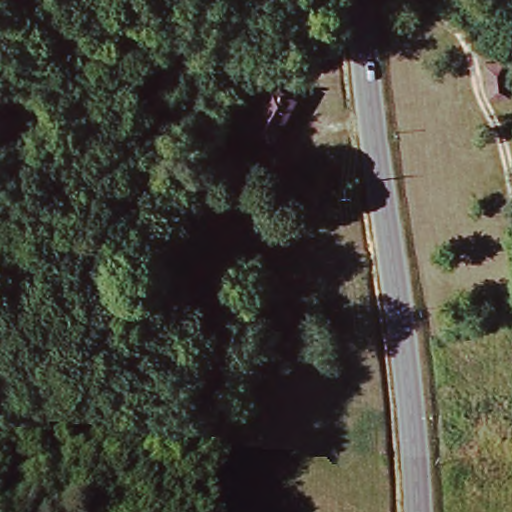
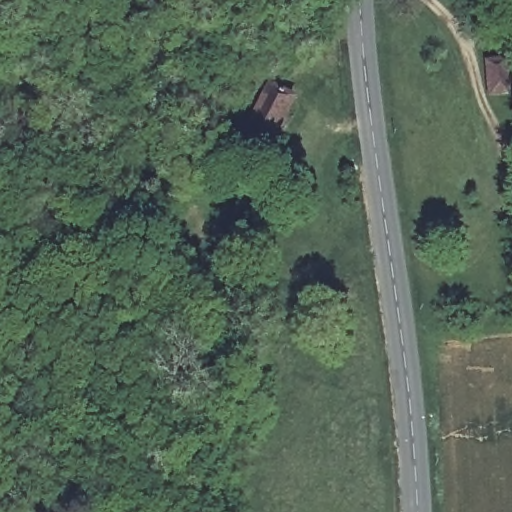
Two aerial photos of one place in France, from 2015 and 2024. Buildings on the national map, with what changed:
unchanged [(507,90),(488,94),(483,62),(502,59),(507,90)]
unchanged [(234,114),(270,77),(297,102),(268,141),(234,114)]

